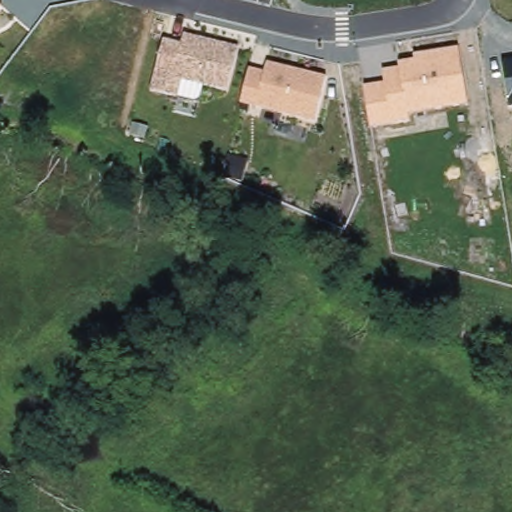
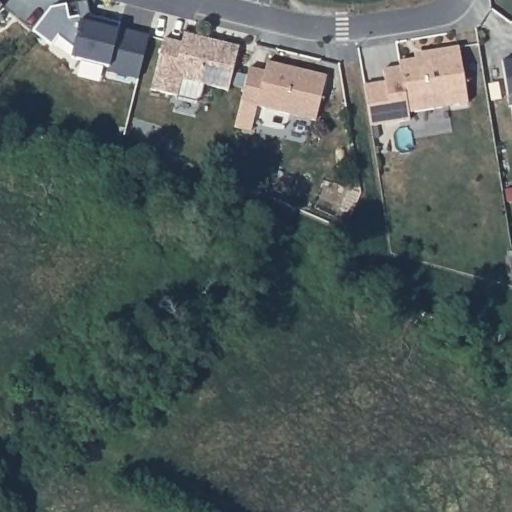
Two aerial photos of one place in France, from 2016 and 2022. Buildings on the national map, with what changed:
new [(33,31),(51,8),(86,1),(89,15),(120,24),(119,28),(149,35),(138,80),(107,73),(109,68),(72,59),(74,46),(59,36),(51,46),(33,31)]
unchanged [(0,9),(0,5),(2,6),(0,9)]
unchanged [(229,90),(184,80),(180,98),(149,90),(162,38),(180,43),(184,34),(239,46),(229,90)]
unchanged [(364,86),(384,82),(382,70),(399,68),(399,62),(414,59),(414,54),(461,48),(469,104),(409,114),(409,121),(371,127),(364,86)]
unchanged [(502,63),(512,60),(512,106),(509,107),(502,63)]
unchanged [(316,122),(239,103),(248,68),(265,72),(268,61),(329,75),(316,122)]

